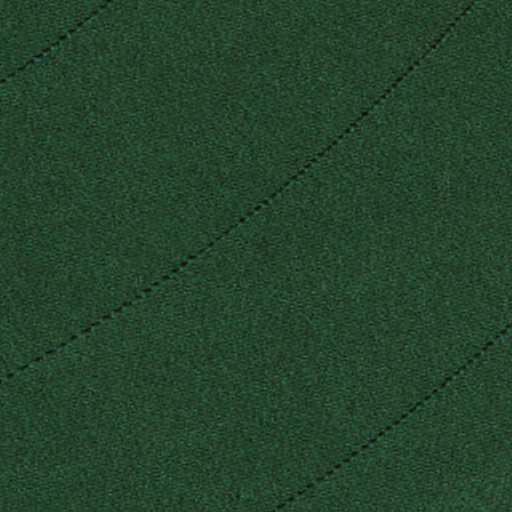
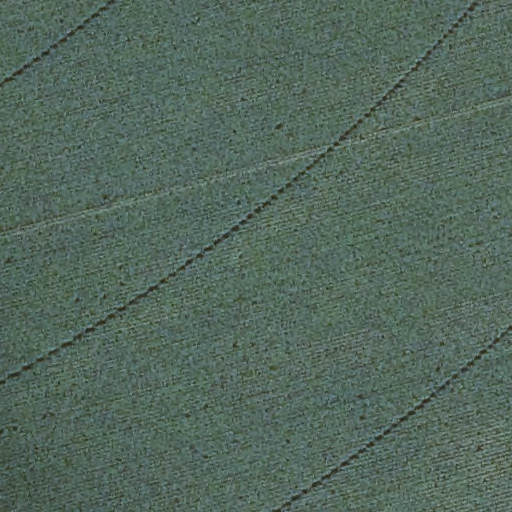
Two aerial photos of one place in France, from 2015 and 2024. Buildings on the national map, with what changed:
[]

